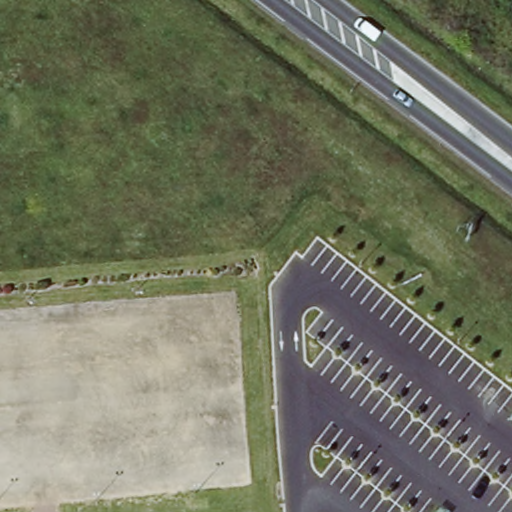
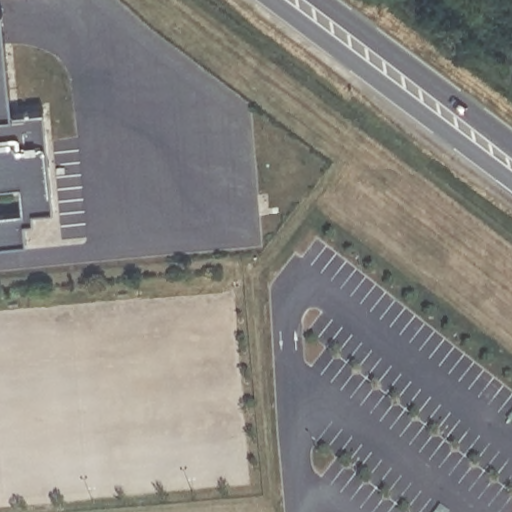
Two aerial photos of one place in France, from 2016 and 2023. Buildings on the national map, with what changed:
new [(13,112),(43,110),(53,210),(33,212),(34,222),(24,223),(26,243),(0,245),(0,215),(24,213),(20,185),(0,187),(0,8),(2,8),(13,112)]

